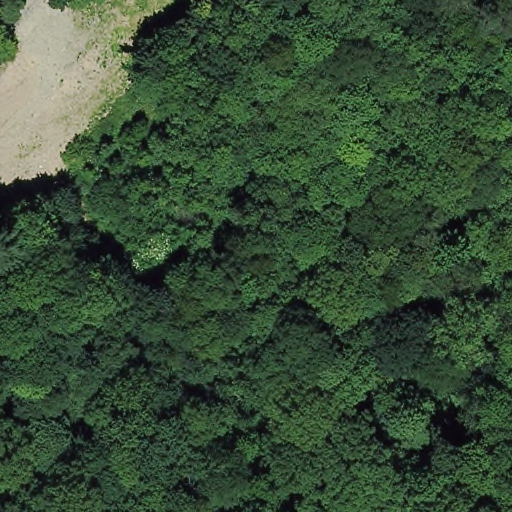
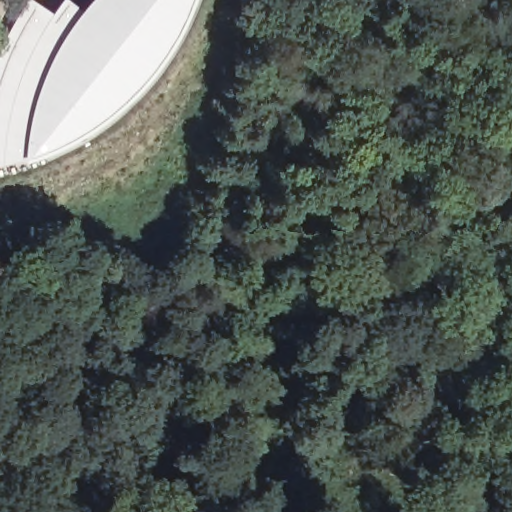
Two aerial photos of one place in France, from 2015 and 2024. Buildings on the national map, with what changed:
new [(171,44),(152,69),(133,89),(108,111),(74,134),(40,151),(17,158),(0,160),(0,62),(11,35),(32,0),(38,0),(55,11),(63,0),(75,0),(83,6),(89,0),(193,0),(187,13),(171,44)]
demolished [(67,25),(42,56),(13,32),(40,0),(52,0),(62,9),(57,16),(67,25)]
demolished [(71,92),(45,124),(65,141),(23,187),(0,166),(0,96),(32,60),(71,92)]

